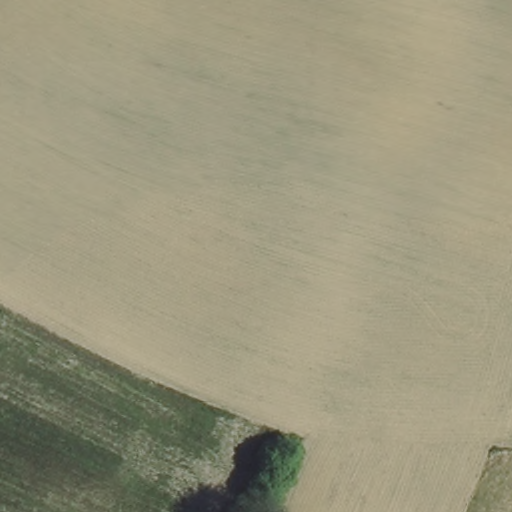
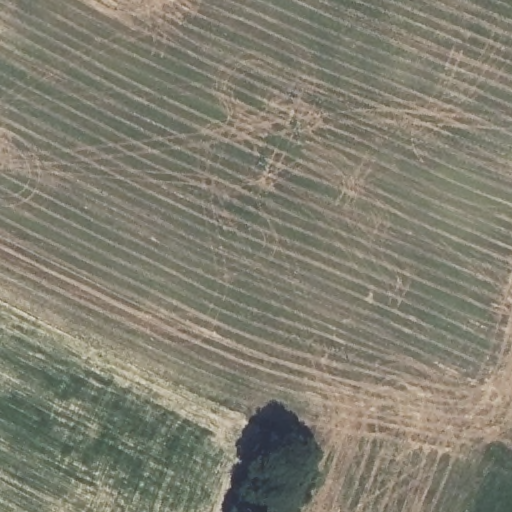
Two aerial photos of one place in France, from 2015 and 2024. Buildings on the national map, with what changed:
[]

